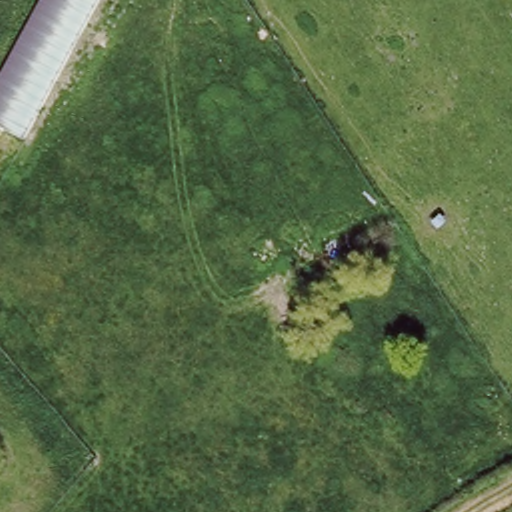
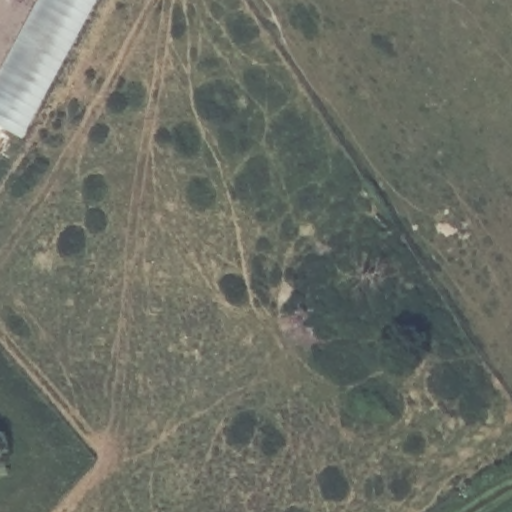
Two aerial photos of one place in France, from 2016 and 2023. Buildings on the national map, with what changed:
unchanged [(96,0),(22,140),(0,127),(0,68),(38,0),(96,0)]

